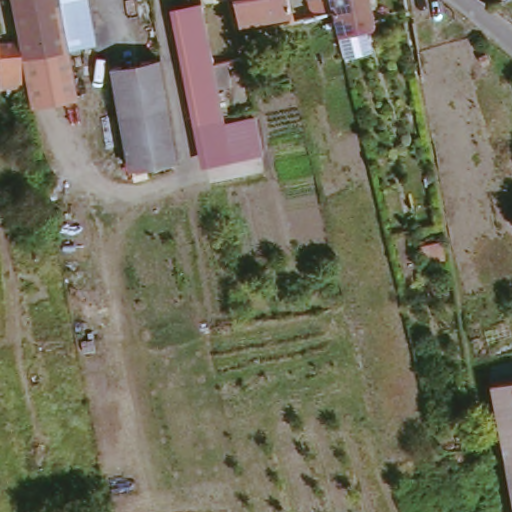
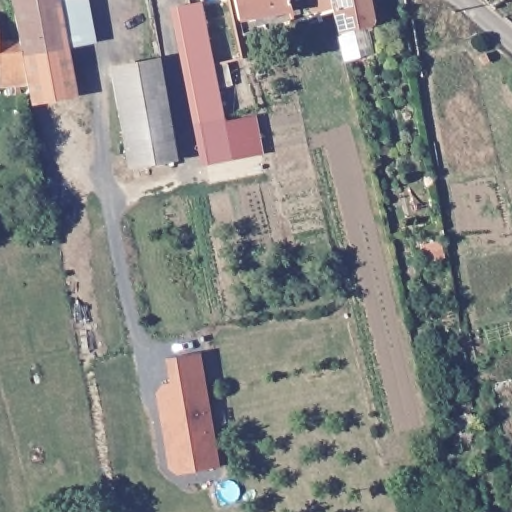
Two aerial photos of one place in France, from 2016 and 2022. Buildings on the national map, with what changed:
unchanged [(75,95),(28,102),(25,84),(0,85),(0,39),(13,37),(8,0),(58,0),(75,95)]
unchanged [(291,4),(245,17),(240,0),(291,0),(291,4)]
unchanged [(318,12),(316,0),(338,0),(340,5),(318,12)]
unchanged [(340,5),(338,0),(381,0),(383,16),(345,27),(340,5)]
unchanged [(209,160),(178,9),(203,4),(215,57),(234,155),(229,156),(209,160)]
unchanged [(184,162),(137,170),(120,70),(165,61),(171,96),(184,162)]
unchanged [(416,235),(437,229),(441,245),(434,247),(420,250),(416,235)]
new [(220,466),(175,474),(168,469),(156,392),(160,385),(168,383),(164,357),(200,353),(220,466)]

